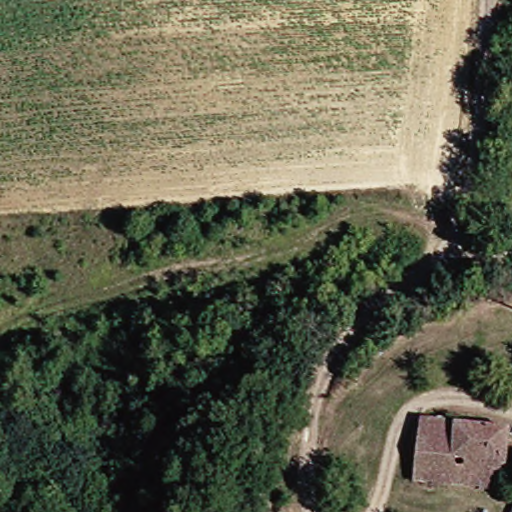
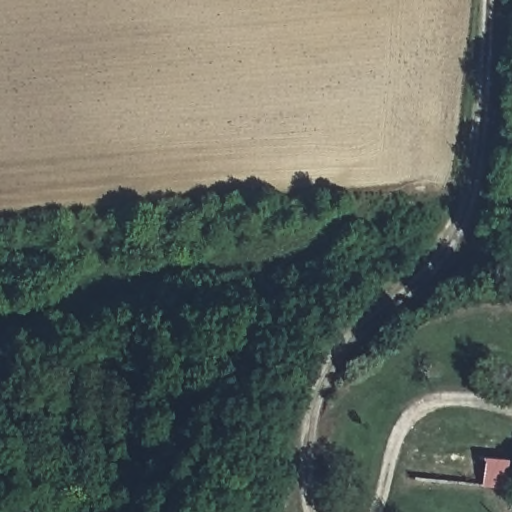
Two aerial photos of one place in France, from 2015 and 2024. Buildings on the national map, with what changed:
demolished [(411,463),(415,420),(503,429),(499,472),(411,463)]

